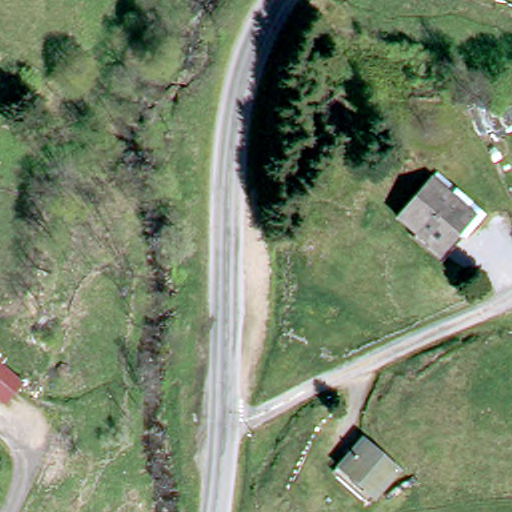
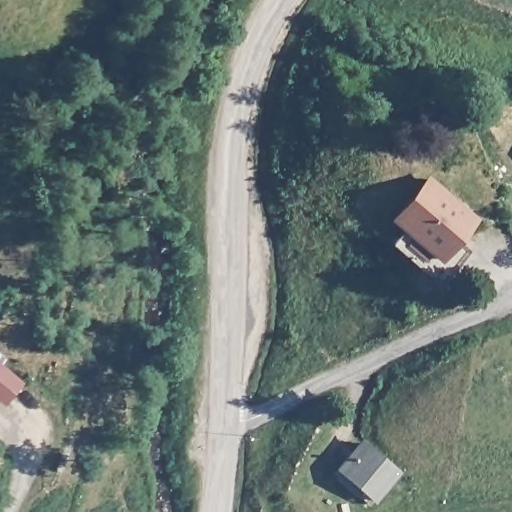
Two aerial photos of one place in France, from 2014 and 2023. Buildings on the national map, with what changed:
unchanged [(438,265),(393,228),(426,189),(468,224),(438,265)]
unchanged [(16,382),(2,399),(0,397),(0,369),(16,382)]
unchanged [(366,451),(398,485),(375,510),(341,475),(366,451)]

